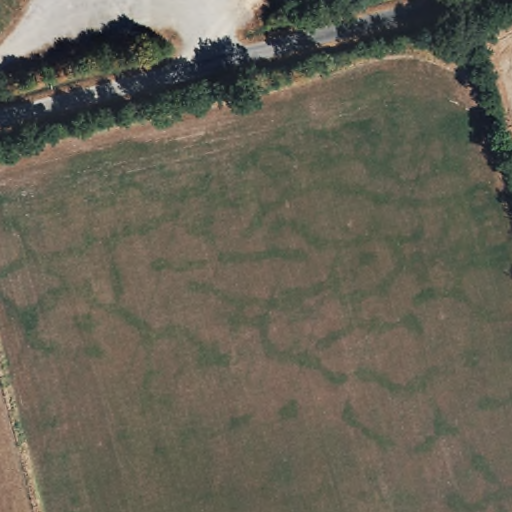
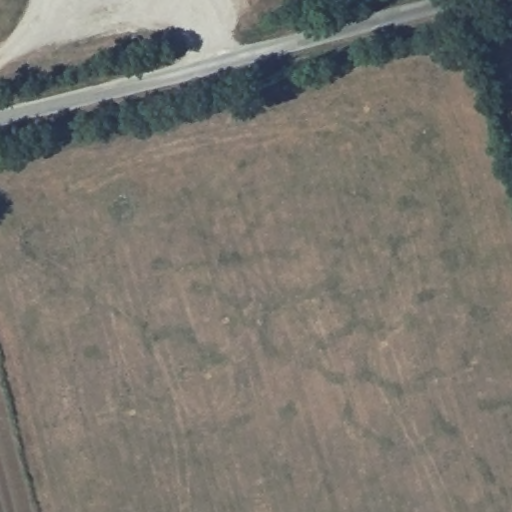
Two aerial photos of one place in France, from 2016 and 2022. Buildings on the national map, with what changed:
[]

